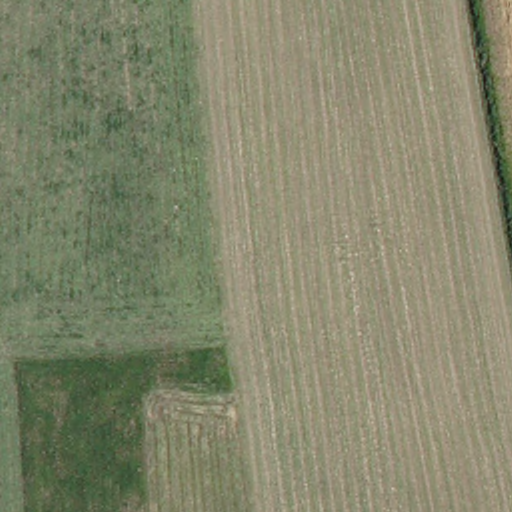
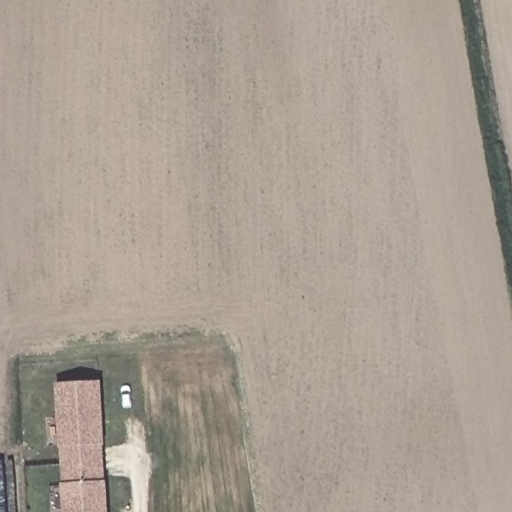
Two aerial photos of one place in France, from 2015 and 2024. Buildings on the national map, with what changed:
new [(99,383),(101,442),(100,443),(101,464),(65,465),(64,444),(62,444),(59,386),(99,383)]
new [(66,486),(65,465),(101,464),(102,484),(104,484),(105,512),(66,512),(65,486),(66,486)]

